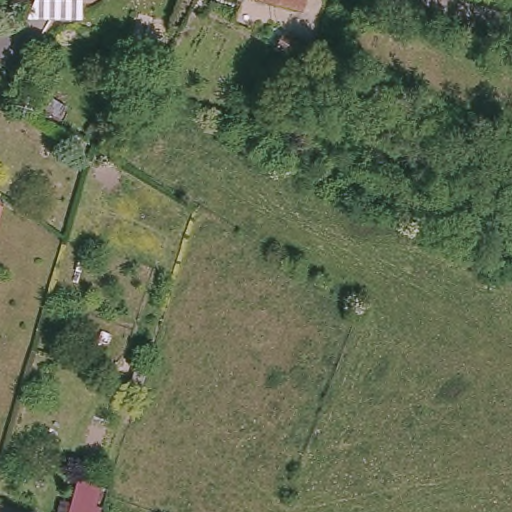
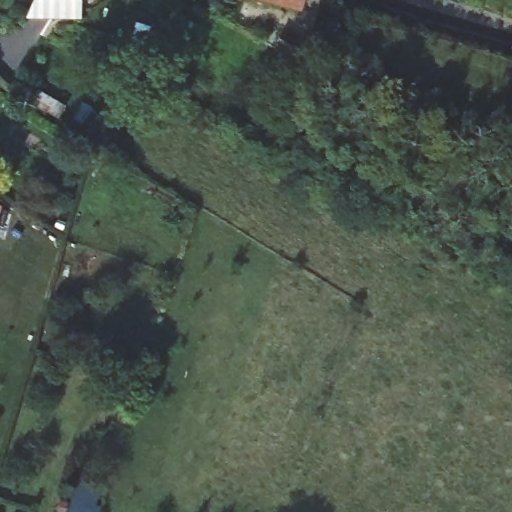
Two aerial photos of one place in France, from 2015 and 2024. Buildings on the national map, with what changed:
unchanged [(32,7),(36,0),(84,0),(84,8),(32,7)]
unchanged [(306,10),(281,4),(266,0),(309,0),(306,10)]
unchanged [(263,41),(270,29),(280,35),(282,33),(312,52),(304,66),(263,41)]
unchanged [(65,106),(58,119),(30,103),(38,90),(65,106)]
unchanged [(128,387),(134,366),(145,370),(138,391),(128,387)]

